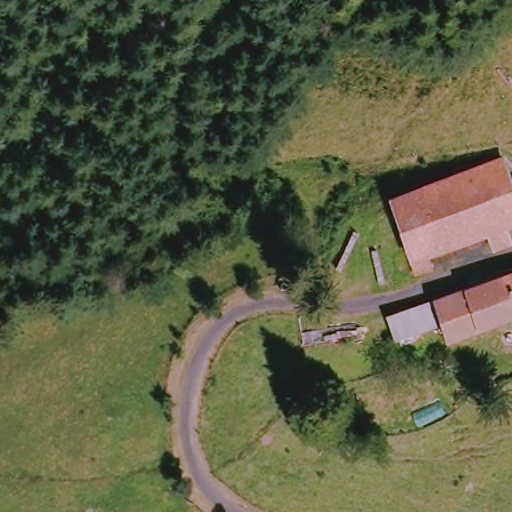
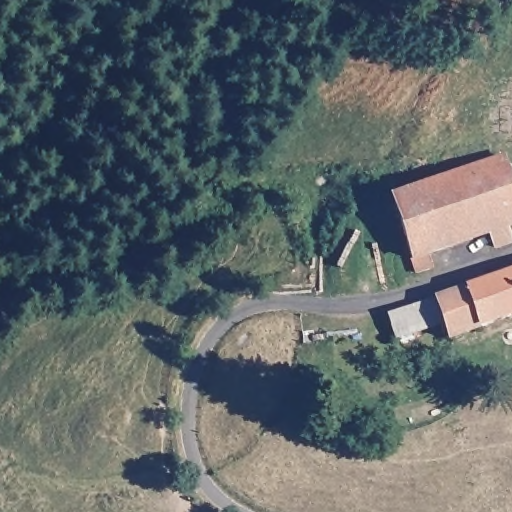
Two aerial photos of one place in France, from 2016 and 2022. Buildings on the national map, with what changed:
unchanged [(512,167),(512,225),(467,242),(449,182),(510,163),(512,167)]
unchanged [(396,197),(449,182),(467,242),(453,247),(427,255),(432,268),(418,273),(396,197)]
unchanged [(458,265),(453,247),(467,242),(512,225),(512,250),(458,265)]
unchanged [(444,322),(398,342),(389,316),(438,297),(469,286),(512,272),(512,320),(486,330),(450,342),(444,322)]

